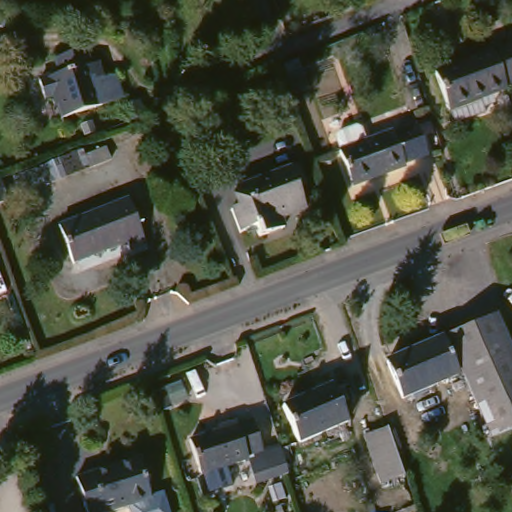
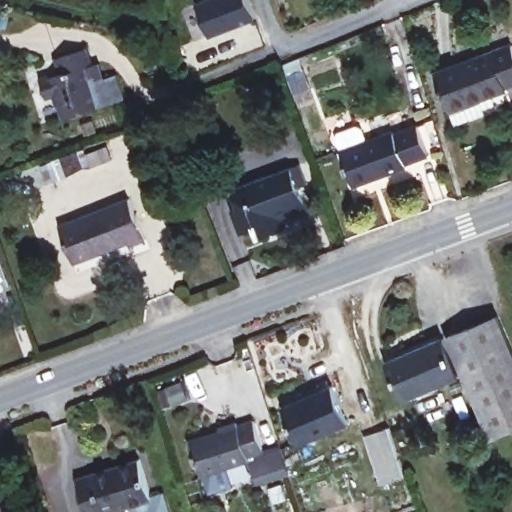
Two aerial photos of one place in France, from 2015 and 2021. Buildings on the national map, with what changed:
new [(211,0),(248,0),(256,19),(212,37),(198,6),(211,0)]
unchanged [(484,102),(485,106),(455,118),(450,104),(436,67),(512,38),(512,39),(512,76),(505,79),(507,83),(492,88),(495,98),(484,102)]
unchanged [(125,97),(104,104),(66,115),(59,93),(51,95),(45,77),(65,71),(61,56),(91,46),(96,62),(91,63),(96,79),(118,73),(125,97)]
unchanged [(308,72),(314,92),(298,98),(291,78),(308,72)]
unchanged [(128,102),(143,96),(149,112),(134,118),(128,102)]
unchanged [(394,129),(395,132),(417,123),(429,154),(406,162),(406,164),(353,184),(340,148),(394,129)]
unchanged [(110,144),(116,162),(51,187),(45,170),(110,144)]
unchanged [(307,196),(299,199),(301,207),(275,217),(279,226),(255,235),(251,224),(234,230),(226,207),(237,202),(230,184),(295,162),(307,196)]
unchanged [(129,196),(145,238),(128,244),(126,240),(74,260),(60,223),(129,196)]
unchanged [(496,316),(512,352),(512,429),(493,437),(448,335),(496,316)]
unchanged [(442,338),(457,374),(405,395),(390,359),(442,338)]
unchanged [(171,391),(186,385),(192,403),(177,409),(171,391)]
unchanged [(338,389),(353,423),(304,444),(289,410),(338,389)]
unchanged [(186,439),(216,430),(215,426),(233,421),(234,424),(249,419),(260,453),(277,448),(285,471),(252,481),(243,456),(197,472),(186,439)]
unchanged [(412,479),(387,487),(370,440),(395,432),(412,479)]
unchanged [(91,474),(140,459),(152,496),(102,512),(89,512),(78,478),(91,474)]

